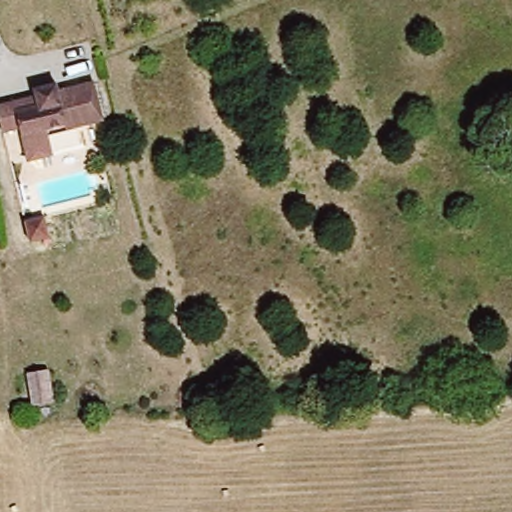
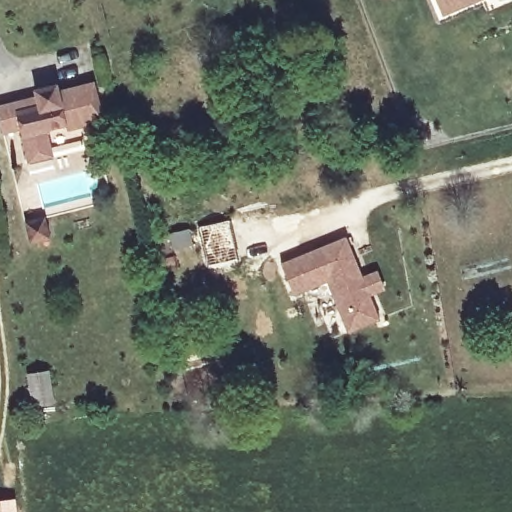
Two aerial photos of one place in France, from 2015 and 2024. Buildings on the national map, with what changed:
new [(442,14),(436,0),(476,0),(442,14)]
unchanged [(28,165),(20,133),(3,137),(0,126),(0,110),(36,101),(35,94),(55,89),(57,95),(92,86),(102,125),(66,134),(65,129),(45,134),(51,159),(28,165)]
unchanged [(25,222),(45,217),(50,237),(30,242),(25,222)]
new [(330,243),(345,237),(362,277),(375,271),(383,289),(370,295),(380,319),(347,332),(327,281),(293,295),(280,264),(321,247),(330,243)]

